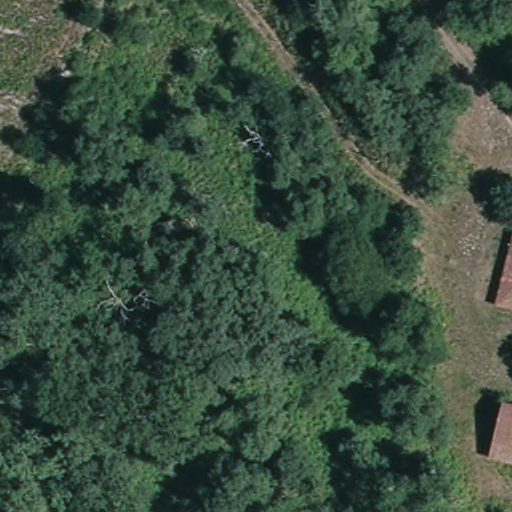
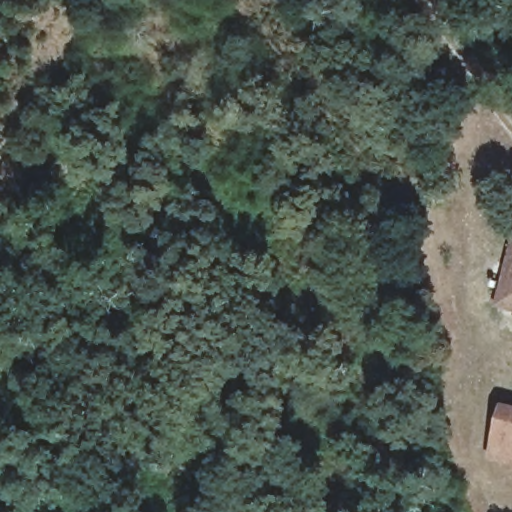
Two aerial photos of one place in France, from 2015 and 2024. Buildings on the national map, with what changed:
unchanged [(493,289),(503,240),(512,242),(512,309),(490,305),(493,289)]
unchanged [(497,404),(512,409),(512,464),(483,455),(497,404)]

